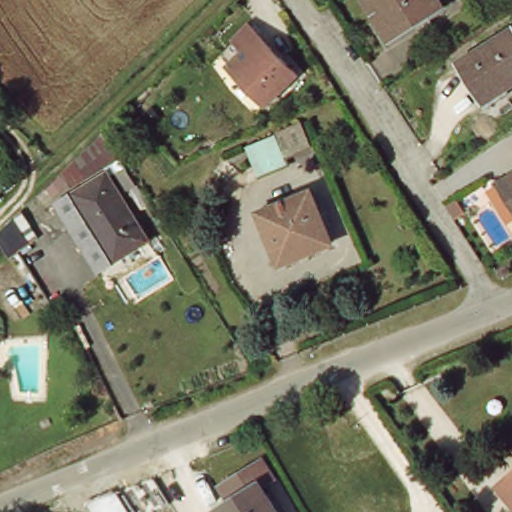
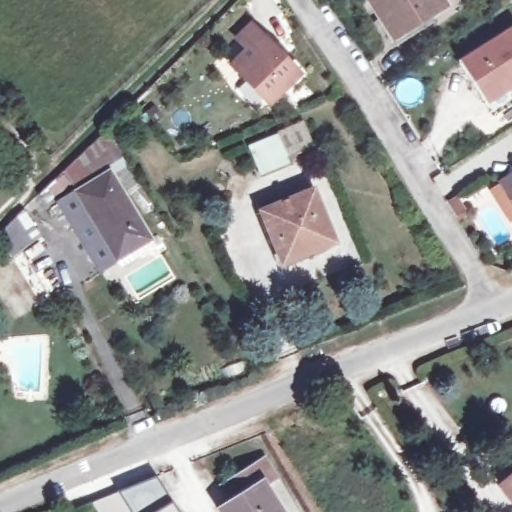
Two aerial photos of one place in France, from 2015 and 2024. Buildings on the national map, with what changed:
unchanged [(445,4),(393,37),(369,0),(442,0),(445,4)]
unchanged [(275,50),(283,58),(286,56),(303,73),(273,103),(235,65),(251,49),(240,38),(255,24),(266,35),(278,47),(275,50)]
unchanged [(462,59),(512,28),(512,84),(488,99),(462,59)]
unchanged [(305,124),(313,143),(290,153),(294,162),(264,174),(252,146),(305,124)]
unchanged [(82,206),(73,191),(104,160),(115,149),(132,177),(82,206)]
unchanged [(512,178),(512,194),(505,182),(512,178)]
unchanged [(148,204),(137,210),(125,190),(135,184),(148,204)]
unchanged [(159,259),(127,279),(87,211),(119,192),(159,259)]
unchanged [(338,246),(287,266),(266,214),(317,194),(338,246)]
unchanged [(17,216),(33,242),(22,250),(6,226),(17,216)]
unchanged [(227,485),(268,460),(280,479),(270,485),(286,512),(228,512),(225,507),(237,500),(227,485)]
new [(171,499),(152,512),(129,512),(116,489),(155,473),(171,499)]
unchanged [(512,481),(512,494),(505,486),(512,481)]
new [(129,512),(96,512),(89,501),(116,489),(129,512)]
new [(179,512),(152,512),(171,499),(179,512)]

